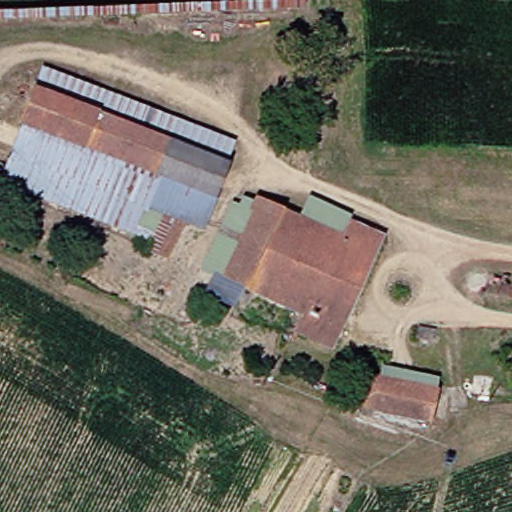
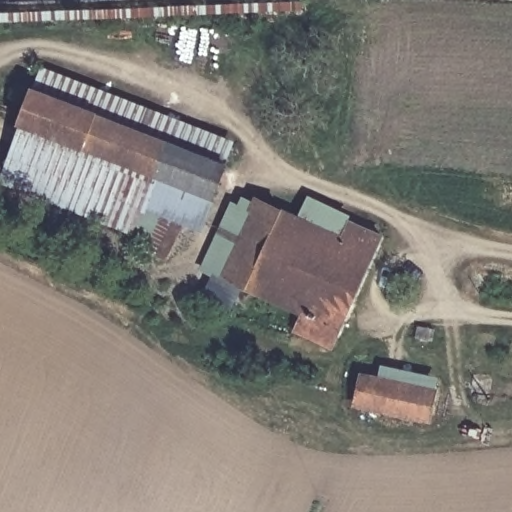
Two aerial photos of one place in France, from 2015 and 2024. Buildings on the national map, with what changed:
unchanged [(36,66),(231,141),(224,158),(29,85),(36,66)]
unchanged [(210,191),(16,119),(29,85),(224,158),(210,191)]
unchanged [(16,119),(210,191),(195,230),(187,227),(170,262),(148,255),(151,245),(0,184),(0,166),(16,119)]
unchanged [(232,285),(194,267),(224,201),(242,209),(248,196),(300,220),(307,207),(340,221),(375,237),(321,347),(284,330),(292,312),(241,288),(236,301),(227,297),(232,285)]
unchanged [(423,416),(350,401),(356,371),(429,386),(423,416)]

